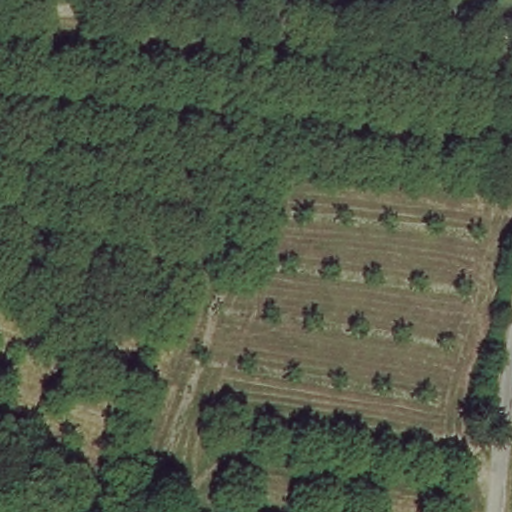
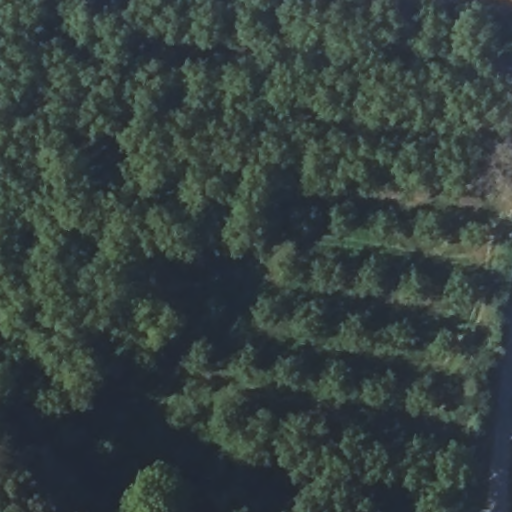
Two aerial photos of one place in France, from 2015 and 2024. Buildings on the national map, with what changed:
unchanged [(26,172),(17,168),(21,157),(30,161),(26,172)]

